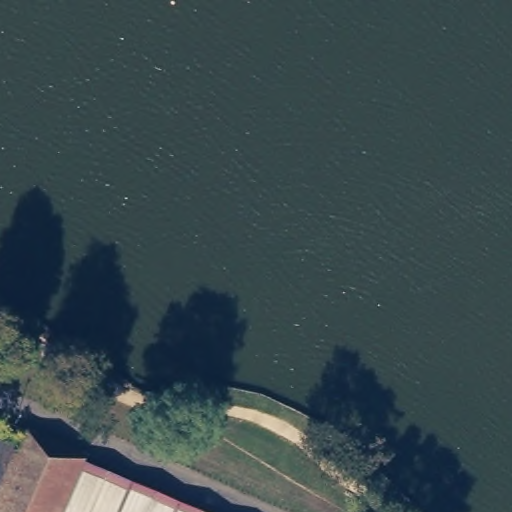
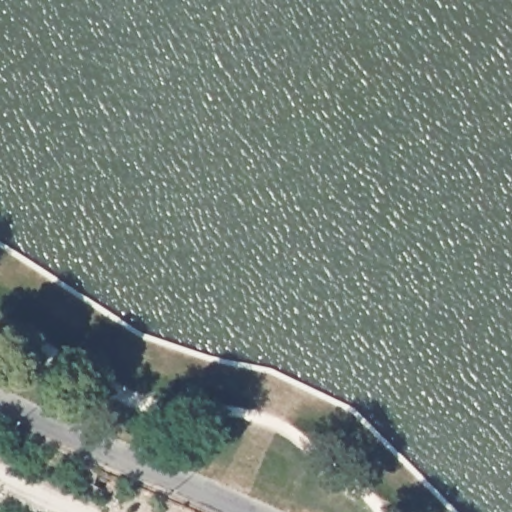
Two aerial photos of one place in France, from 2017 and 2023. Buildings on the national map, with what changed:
demolished [(25,445),(32,427),(91,453),(91,455),(87,461),(204,512),(0,512),(0,434),(25,445)]

